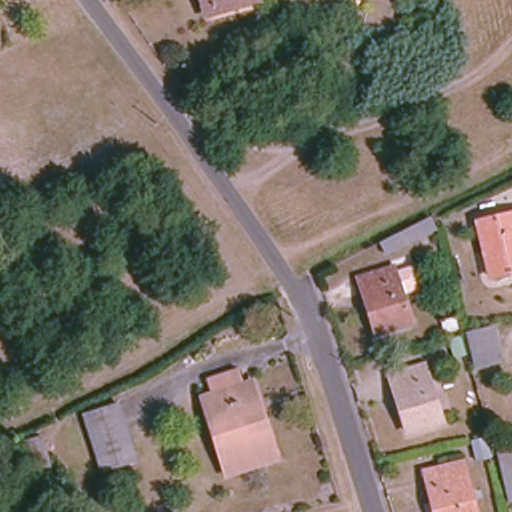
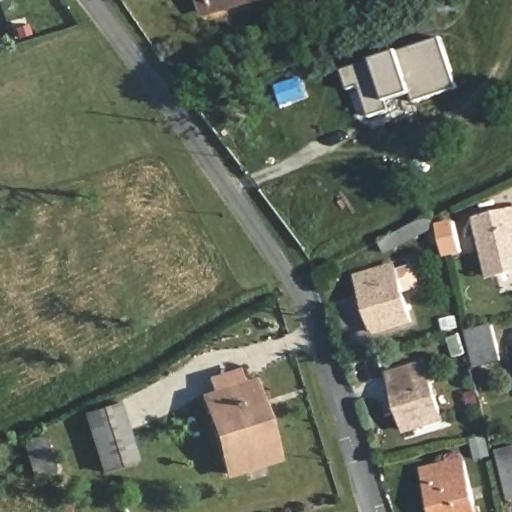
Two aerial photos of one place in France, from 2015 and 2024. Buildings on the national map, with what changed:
unchanged [(235,0),(237,6),(212,13),(208,0),(236,0),(235,0)]
new [(440,40),(457,91),(414,106),(411,97),(388,104),(390,113),(370,120),(362,96),(366,94),(364,87),(348,93),(342,73),(440,40)]
unchanged [(491,278),(477,222),(512,213),(512,273),(491,278)]
unchanged [(385,255),(380,245),(428,218),(434,229),(385,255)]
unchanged [(375,334),(357,279),(392,267),(410,323),(375,334)]
unchanged [(499,362),(474,368),(466,333),(491,327),(499,362)]
unchanged [(406,434),(388,377),(424,365),(442,422),(406,434)]
unchanged [(280,459),(230,475),(206,398),(257,383),(280,459)]
unchanged [(101,472),(83,415),(117,405),(135,462),(101,472)]
unchanged [(51,472),(31,478),(21,442),(42,436),(51,472)]
unchanged [(507,501),(496,453),(512,450),(512,501),(507,501)]
unchanged [(430,504),(423,472),(462,462),(475,512),(440,512),(438,503),(430,504)]
unchanged [(41,512),(35,492),(45,489),(52,512),(41,512)]

